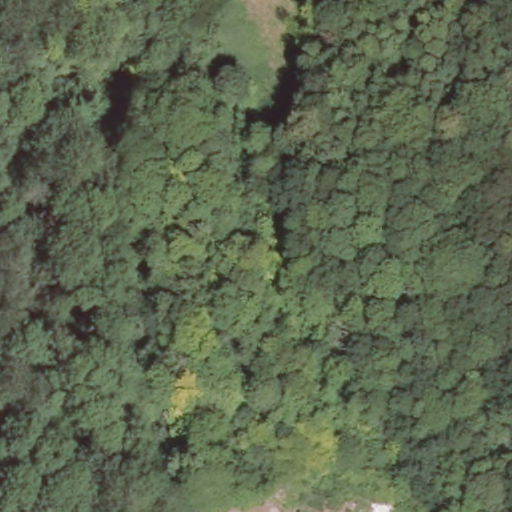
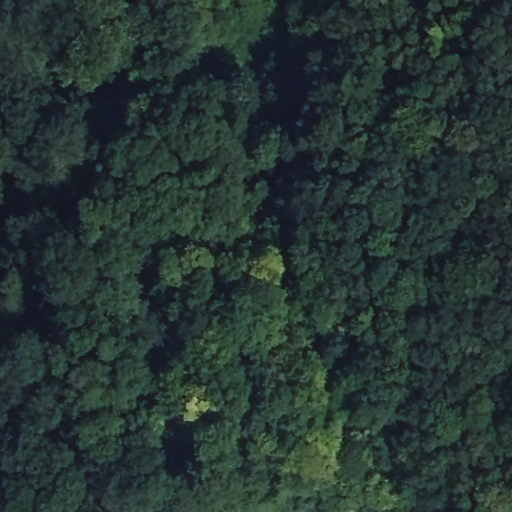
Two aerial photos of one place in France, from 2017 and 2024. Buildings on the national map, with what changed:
unchanged [(202,187),(206,212),(174,217),(170,191),(202,187)]

